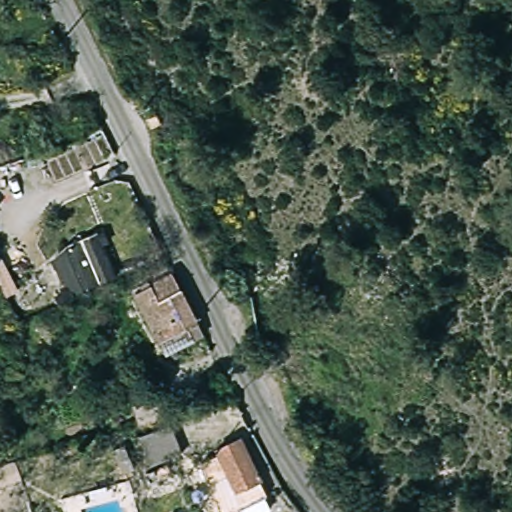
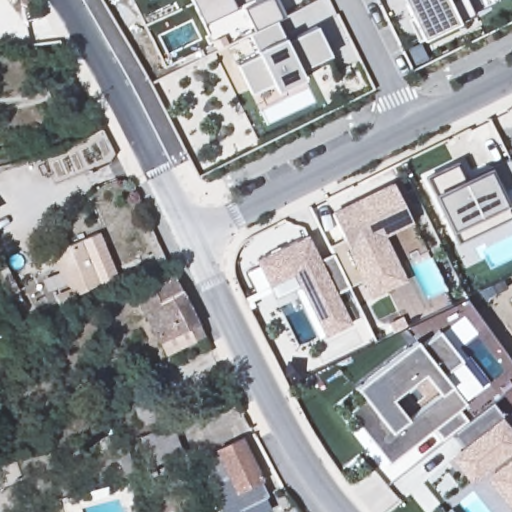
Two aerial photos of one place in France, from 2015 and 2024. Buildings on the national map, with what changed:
new [(190,0),(247,0),(232,7),(200,23),(192,5),(190,0)]
new [(272,0),(280,19),(253,31),(242,8),(258,0),(272,0)]
new [(255,0),(259,0),(256,1),(255,0)]
new [(280,19),(272,0),(276,0),(284,16),(280,19)]
new [(451,0),(465,0),(472,14),(457,21),(458,23),(421,40),(418,43),(406,20),(411,17),(402,0),(447,0),(448,1),(451,0)]
new [(300,70),(303,78),(276,92),(272,84),(251,95),(237,65),(258,55),(248,34),(276,21),(282,35),(292,32),(293,37),(317,28),(330,56),(300,70)]
new [(423,177),(455,161),(465,177),(489,166),(490,167),(508,159),(512,166),(512,209),(509,210),(512,216),(512,217),(457,245),(450,231),(432,194),(423,177)]
new [(387,287),(371,295),(363,280),(348,287),(328,247),(343,239),(331,215),(346,207),(353,204),(392,185),(410,221),(380,235),(395,264),(403,280),(387,287)]
unchanged [(83,286),(78,273),(67,244),(98,232),(109,261),(113,274),(83,286)]
new [(348,287),(335,293),(351,325),(323,338),(293,275),(267,286),(255,260),(307,235),(320,261),(332,255),(348,287)]
unchanged [(170,277),(200,337),(200,338),(165,357),(158,343),(156,345),(131,296),(170,277)]
new [(512,302),(512,305),(510,303),(512,302)]
new [(419,344),(438,330),(462,361),(460,362),(480,387),(463,401),(465,403),(456,410),(466,422),(450,435),(442,441),(433,429),(390,464),(347,412),(363,400),(355,387),(414,340),(419,344)]
new [(490,402),(505,420),(500,422),(512,437),(512,508),(489,478),(495,473),(488,465),(480,472),(470,480),(453,459),(463,451),(450,435),(490,402)]
unchanged [(178,457),(144,467),(134,439),(168,428),(178,457)]
unchanged [(215,454),(212,448),(241,433),(262,478),(260,479),(265,492),(262,493),(270,507),(261,512),(220,512),(200,461),(215,454)]
unchanged [(122,452),(133,447),(140,463),(129,468),(122,452)]
new [(450,510),(452,512),(447,512),(450,510)]

